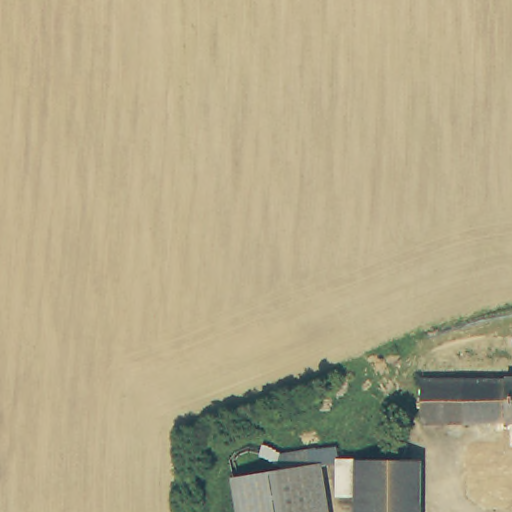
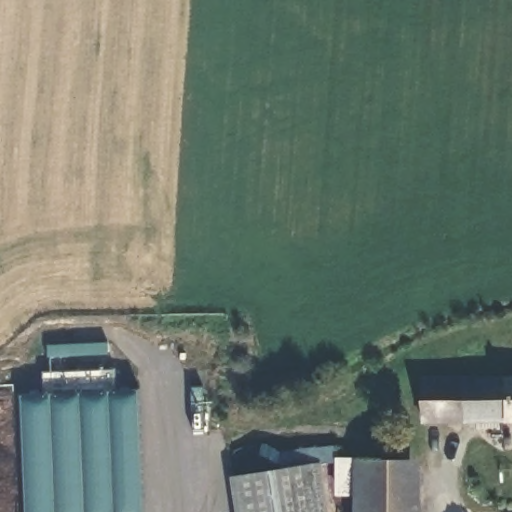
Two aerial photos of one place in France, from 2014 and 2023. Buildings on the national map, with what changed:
new [(143,512),(24,512),(21,395),(45,393),(44,373),(115,369),(116,392),(138,391),(143,512)]
demolished [(419,417),(419,373),(512,371),(512,416),(419,417)]
new [(423,376),(506,376),(512,375),(512,423),(505,424),(423,425),(423,376)]
unchanged [(287,446),(344,436),(346,450),(319,454),(314,454),(288,459),(287,446)]
unchanged [(414,512),(368,512),(368,483),(351,483),(349,451),(368,451),(415,451),(414,512)]
unchanged [(286,468),(317,463),(325,512),(249,512),(243,475),(286,468)]

